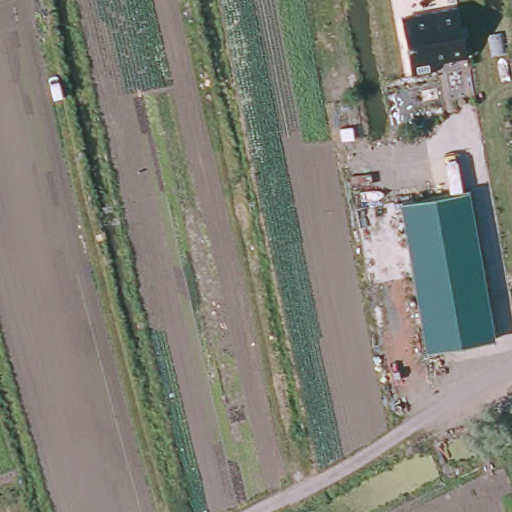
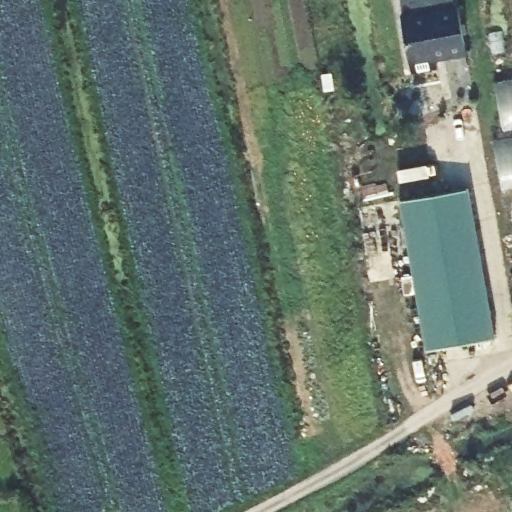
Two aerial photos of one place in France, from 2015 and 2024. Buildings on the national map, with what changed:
unchanged [(459,6),(468,52),(434,58),(436,67),(409,71),(400,15),(459,6)]
new [(493,141),(507,138),(496,81),(512,78),(512,187),(503,188),(493,141)]
unchanged [(477,188),(504,337),(435,350),(407,201),(477,188)]

